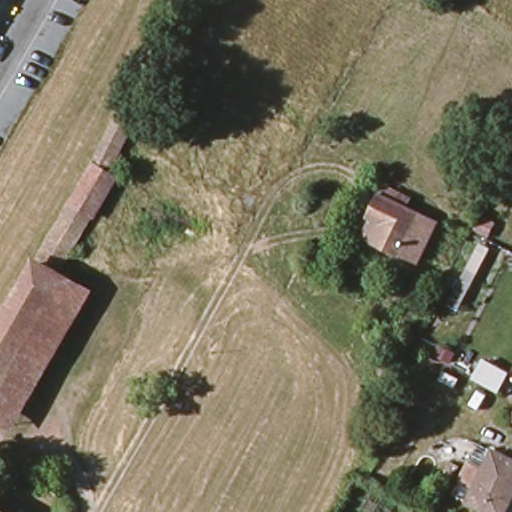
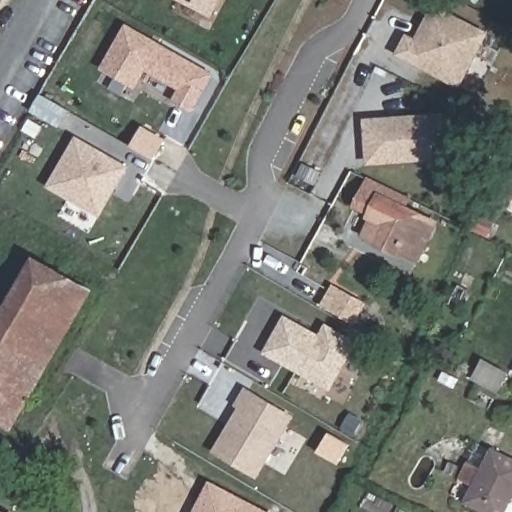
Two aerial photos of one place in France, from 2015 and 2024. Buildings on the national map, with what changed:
new [(182,0),(219,0),(205,29),(175,13),(182,0)]
new [(407,35),(416,39),(434,4),(491,33),(461,90),(397,55),(407,35)]
new [(125,28),(209,76),(189,109),(174,101),(181,89),(143,67),(132,86),(102,69),(125,28)]
new [(367,167),(363,119),(455,112),(457,159),(367,167)]
new [(126,168),(100,214),(52,186),(78,140),(126,168)]
unchanged [(383,185),(391,190),(411,201),(407,209),(443,231),(422,270),(372,241),(359,234),(368,216),(377,197),(383,185)]
new [(458,310),(451,306),(449,305),(478,247),(480,247),(487,251),(458,310)]
unchanged [(57,271),(69,279),(0,396),(0,319),(35,258),(57,271)]
unchanged [(69,279),(89,291),(16,418),(0,409),(0,396),(69,279)]
new [(286,319),(321,339),(327,328),(355,343),(330,387),(267,353),(286,319)]
new [(242,408),(239,406),(247,391),(292,417),(257,475),(217,451),(242,408)]
unchanged [(512,489),(500,512),(488,512),(468,500),(492,450),(512,461),(512,489)]
new [(211,485),(263,512),(197,512),(198,510),(203,501),(211,485)]
unchanged [(5,512),(0,512),(0,509),(5,512)]

